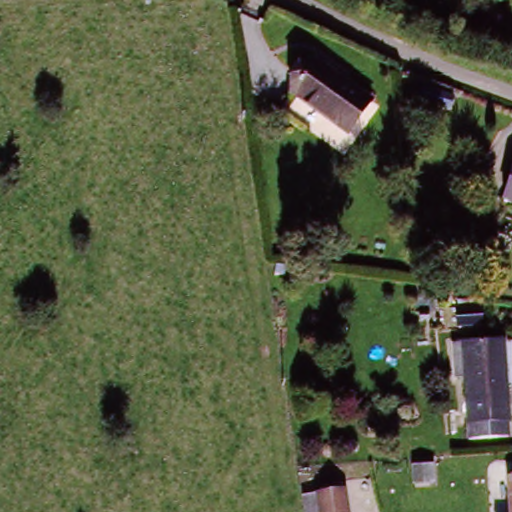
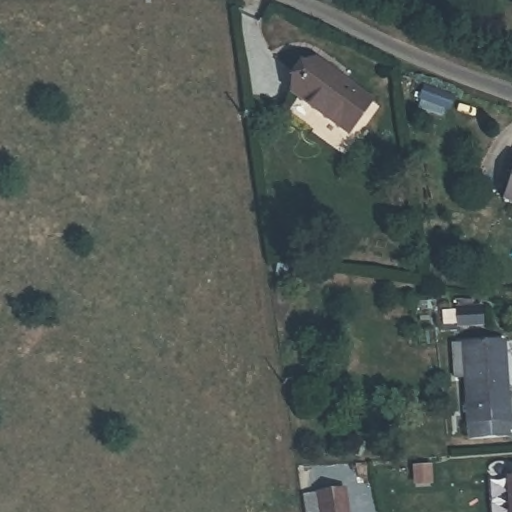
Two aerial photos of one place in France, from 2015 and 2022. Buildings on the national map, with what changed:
unchanged [(286,92),(311,58),(363,98),(336,132),(286,92)]
unchanged [(512,161),(512,200),(500,195),(512,161)]
unchanged [(468,439),(468,425),(463,342),(505,339),(511,422),(510,434),(468,439)]
unchanged [(512,479),(512,512),(510,512),(510,479),(512,479)]
unchanged [(346,488),(348,512),(320,512),(317,491),(346,488)]

